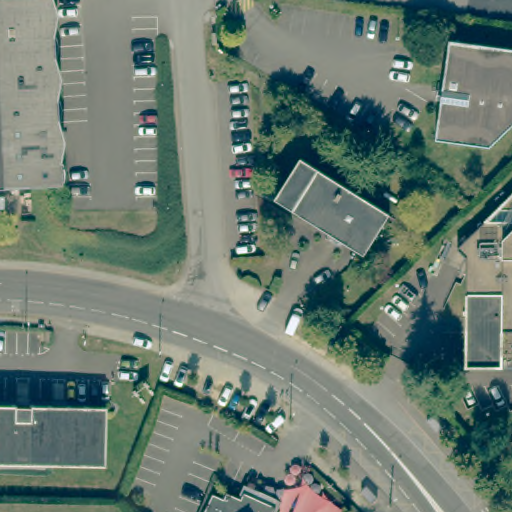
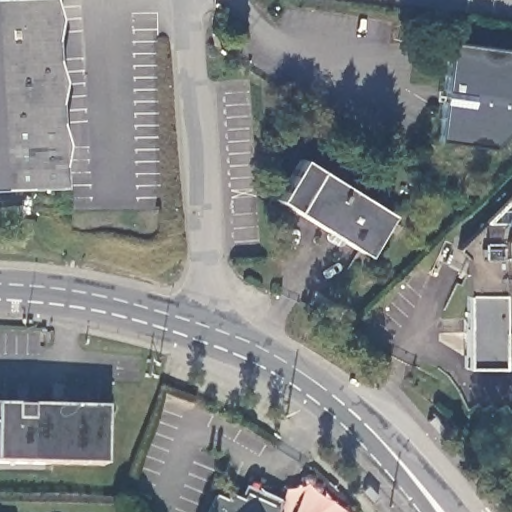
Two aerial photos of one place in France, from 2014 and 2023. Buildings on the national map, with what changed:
unchanged [(58,180),(0,185),(0,0),(47,0),(58,180)]
unchanged [(512,122),(489,144),(435,138),(446,38),(512,47),(512,122)]
unchanged [(390,210),(365,251),(276,197),(302,157),(390,210)]
unchanged [(512,226),(483,225),(512,197),(512,226)]
unchanged [(504,296),(490,295),(464,294),(465,259),(456,250),(458,248),(483,225),(512,226),(512,334),(503,331),(504,296)]
unchanged [(497,365),(495,372),(463,369),(464,294),(490,295),(504,296),(503,331),(512,334),(512,362),(506,367),(497,365)]
unchanged [(101,460),(0,459),(0,401),(13,401),(101,402),(101,460)]
unchanged [(273,495),(287,512),(204,512),(209,495),(273,495)]

